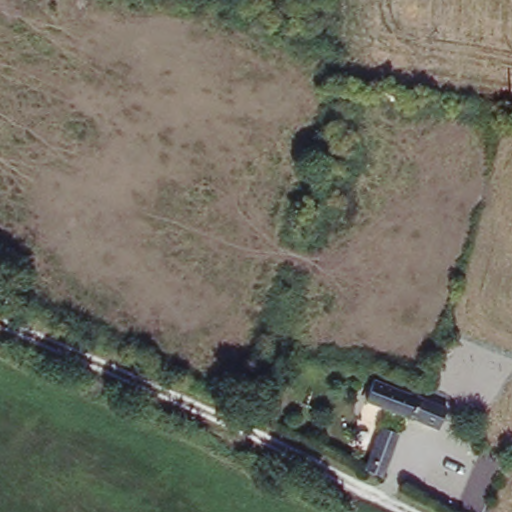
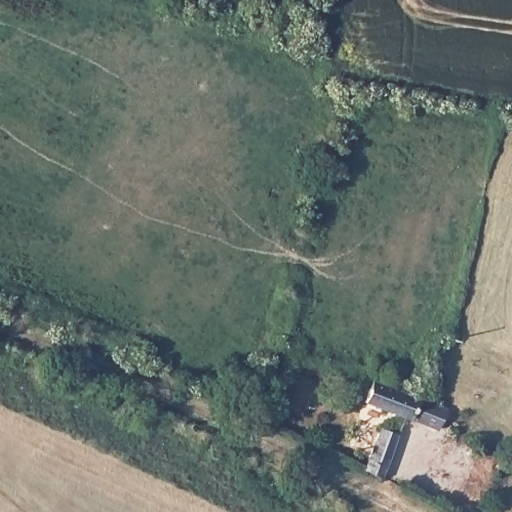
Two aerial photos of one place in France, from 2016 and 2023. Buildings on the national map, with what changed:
unchanged [(437,430),(416,421),(395,412),(369,403),(374,382),(403,392),(406,382),(419,388),(418,398),(425,400),(447,410),(437,430)]
unchanged [(381,420),(401,429),(383,475),(362,466),(381,420)]

